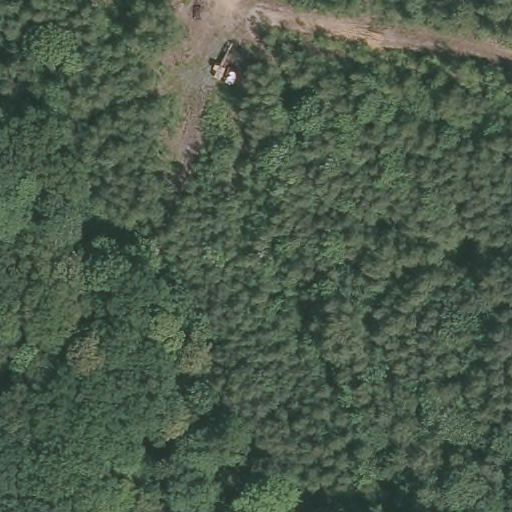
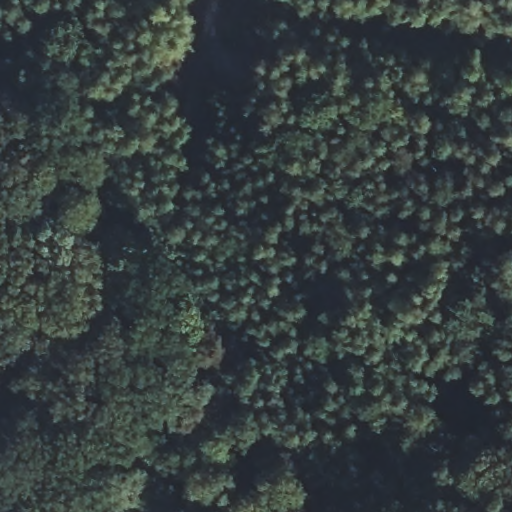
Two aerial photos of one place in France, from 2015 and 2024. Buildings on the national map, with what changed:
[]

